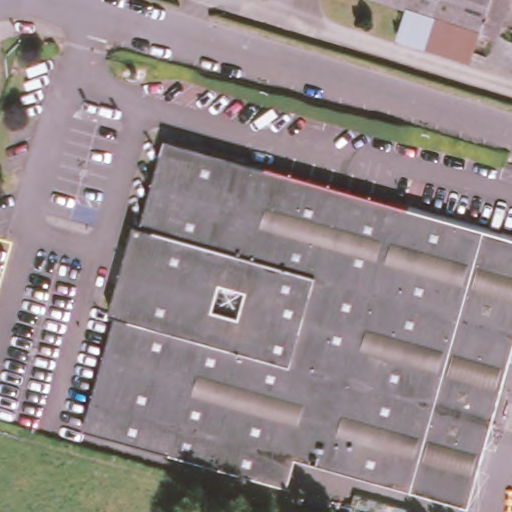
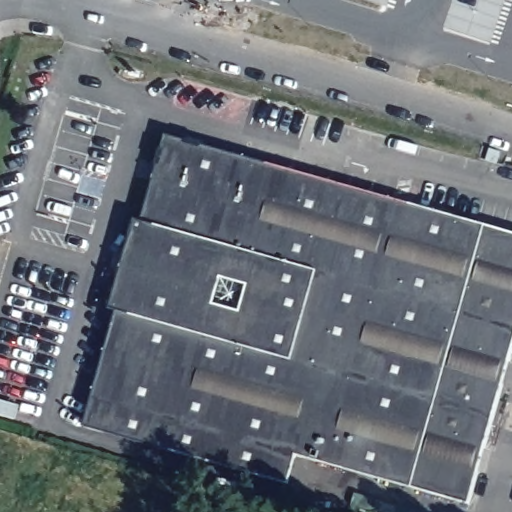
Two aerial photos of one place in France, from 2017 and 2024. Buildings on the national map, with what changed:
demolished [(482,30),(472,59),(397,37),(406,5),(389,0),(511,0),(498,36),(482,30)]
unchanged [(415,489),(300,457),(292,486),(87,428),(123,306),(117,305),(142,217),(149,220),(175,134),(492,225),(458,342),(415,489)]
unchanged [(512,232),(512,325),(463,501),(415,489),(492,225),(512,232)]

